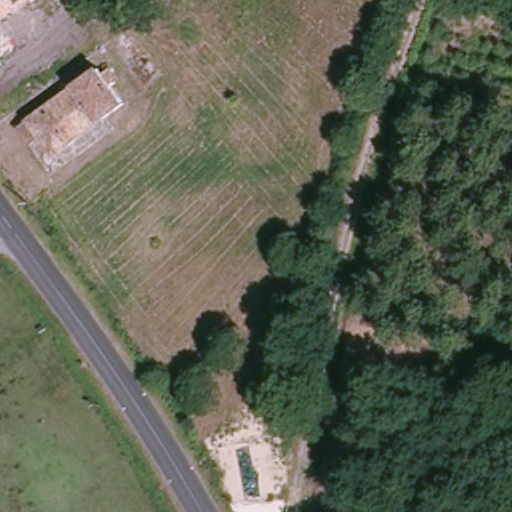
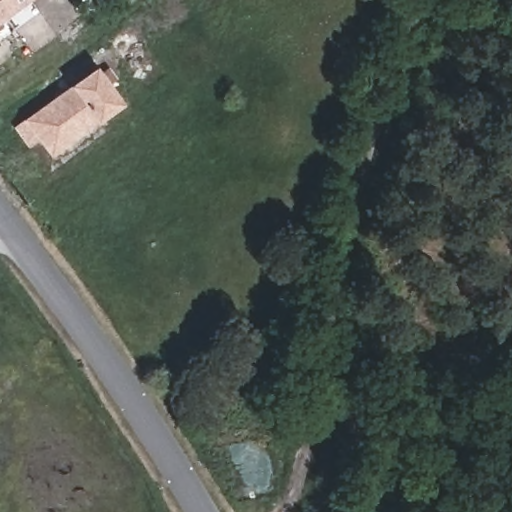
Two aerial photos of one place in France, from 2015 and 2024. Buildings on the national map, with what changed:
unchanged [(0,0),(28,0),(0,20),(0,0)]
unchanged [(102,80),(111,73),(117,83),(109,89),(122,107),(54,156),(42,138),(28,146),(16,130),(96,72),(102,80)]

